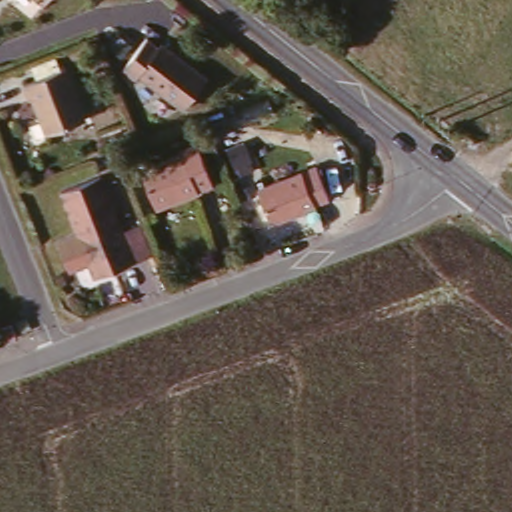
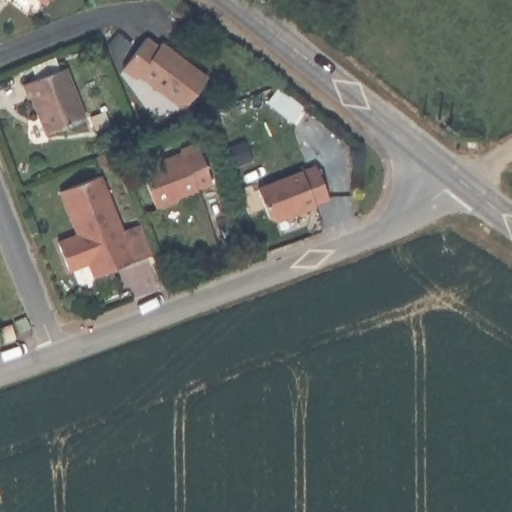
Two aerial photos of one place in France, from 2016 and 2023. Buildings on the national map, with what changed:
unchanged [(145,28),(158,37),(160,34),(207,69),(184,100),(139,68),(136,70),(121,60),(145,28)]
unchanged [(68,65),(90,115),(52,130),(37,94),(31,96),(25,83),(68,65)]
unchanged [(183,149),(182,145),(195,140),(210,180),(198,187),(198,191),(156,208),(140,168),(183,149)]
unchanged [(317,166),(331,201),(305,212),(303,207),(296,209),(297,215),(279,223),(272,220),(259,189),(317,166)]
unchanged [(93,277),(87,261),(68,268),(56,237),(75,230),(60,191),(99,174),(120,225),(139,218),(152,253),(93,277)]
unchanged [(21,304),(25,315),(14,319),(10,309),(21,304)]

